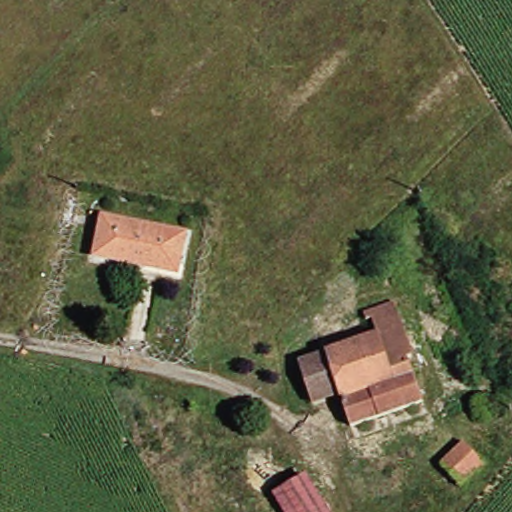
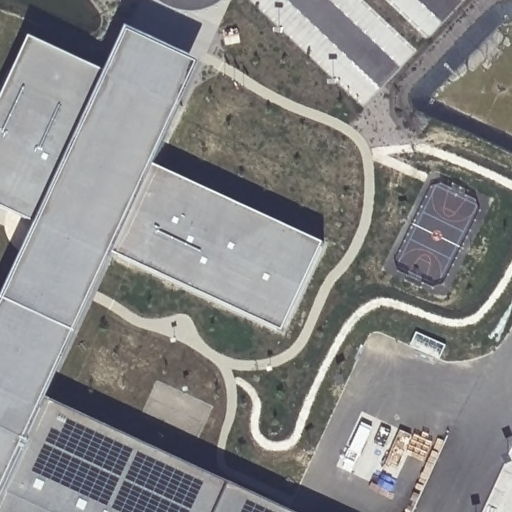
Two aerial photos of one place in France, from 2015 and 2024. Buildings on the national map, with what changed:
new [(325,243),(284,333),(115,251),(48,397),(294,512),(0,512),(0,310),(41,225),(0,206),(0,104),(30,37),(108,74),(130,32),(203,65),(155,165),(325,243)]
demolished [(96,257),(102,217),(190,232),(185,261),(150,254),(148,266),(96,257)]
demolished [(428,402),(355,426),(345,394),(316,402),(304,361),(385,336),(377,312),(402,304),(420,359),(414,361),(428,402)]
demolished [(480,430),(494,442),(483,456),(489,461),(471,482),(451,466),(480,430)]

